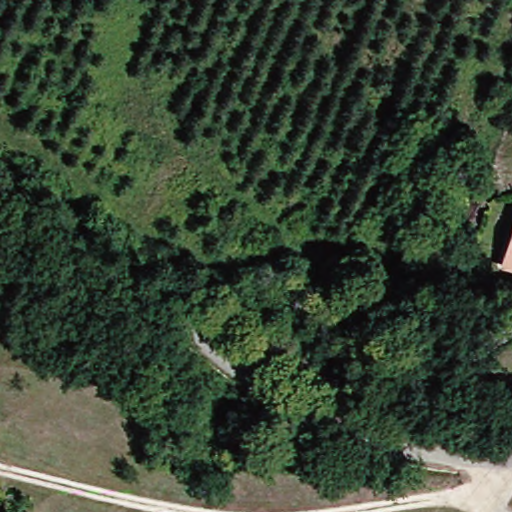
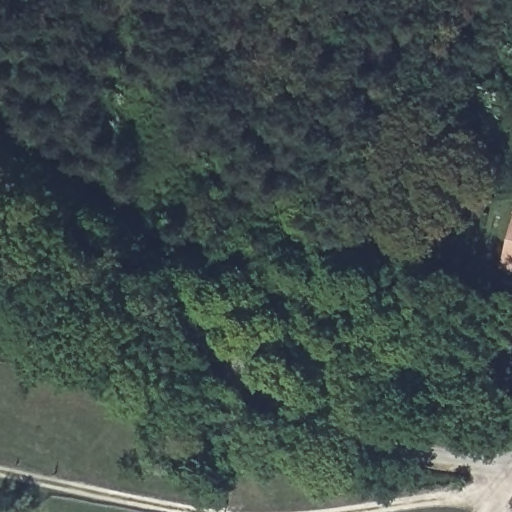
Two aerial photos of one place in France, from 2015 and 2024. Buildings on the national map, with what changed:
unchanged [(512,245),(512,259),(508,258),(512,245)]

